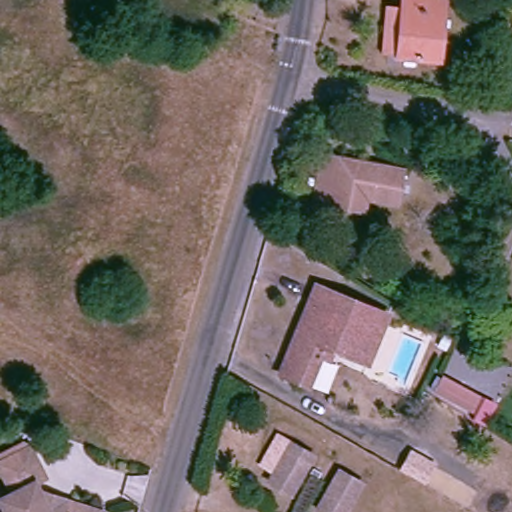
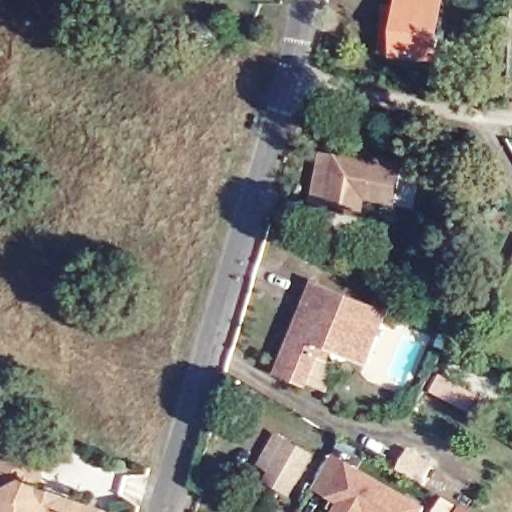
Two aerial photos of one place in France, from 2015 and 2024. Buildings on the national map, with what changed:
unchanged [(387,53),(393,0),(433,0),(428,57),(387,53)]
unchanged [(410,162),(405,192),(375,187),(372,200),(326,191),(334,149),(410,162)]
unchanged [(368,357),(338,345),(335,355),(326,352),(313,381),(287,370),(305,326),(315,323),(320,313),(314,305),(324,282),(355,295),(372,302),(394,311),(377,350),(373,360),(368,357)]
unchanged [(485,401),(475,415),(436,391),(445,377),(485,401)]
unchanged [(0,499),(4,486),(0,480),(0,451),(17,441),(34,468),(25,475),(42,503),(57,494),(98,506),(96,512),(0,512),(0,499)]
unchanged [(270,473),(289,441),(317,457),(298,490),(270,473)]
unchanged [(391,467),(401,449),(423,461),(413,479),(391,467)]
new [(428,508),(427,512),(335,512),(338,504),(328,500),(349,462),(428,508)]
demolished [(337,468),(365,483),(350,512),(338,512),(319,501),(337,468)]

